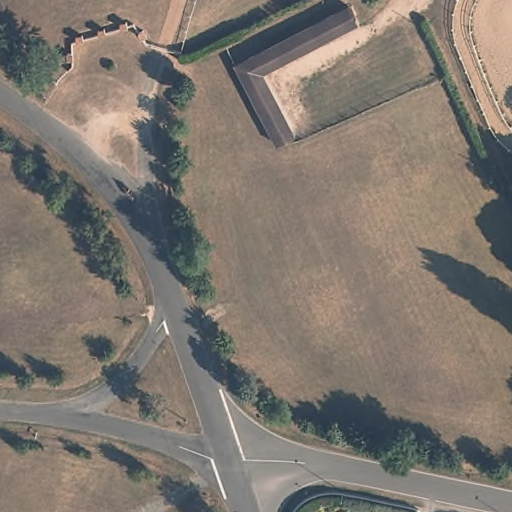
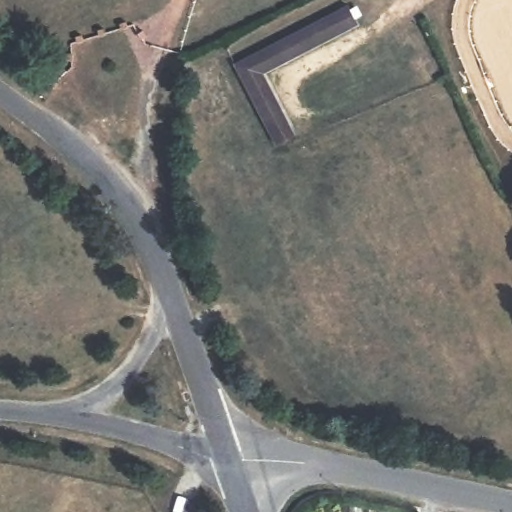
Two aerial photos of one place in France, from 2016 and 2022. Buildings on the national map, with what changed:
unchanged [(263,73),(296,135),(291,137),(278,144),(236,64),(349,5),(356,19),(358,23),(263,73)]
unchanged [(126,22),(127,27),(121,29),(120,24),(126,22)]
unchanged [(104,29),(105,34),(99,36),(97,31),(104,29)]
unchanged [(146,37),(142,39),(139,34),(143,31),(146,37)]
unchanged [(82,35),(84,40),(77,42),(75,37),(82,35)]
unchanged [(72,54),(72,61),(67,61),(67,54),(72,54)]

